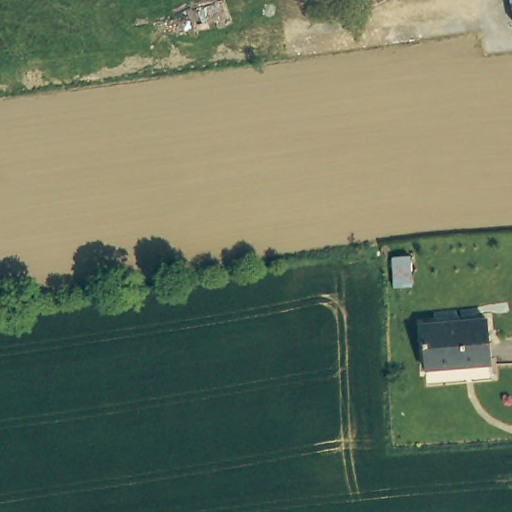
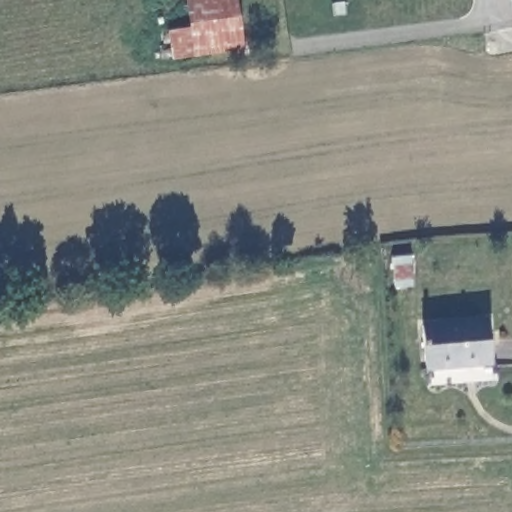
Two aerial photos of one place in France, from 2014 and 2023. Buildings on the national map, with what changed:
new [(243,48),(193,57),(174,59),(169,31),(189,29),(185,0),(236,0),(243,48)]
unchanged [(388,259),(405,258),(406,288),(390,289),(388,259)]
unchanged [(487,320),(492,364),(425,369),(422,325),(487,320)]

